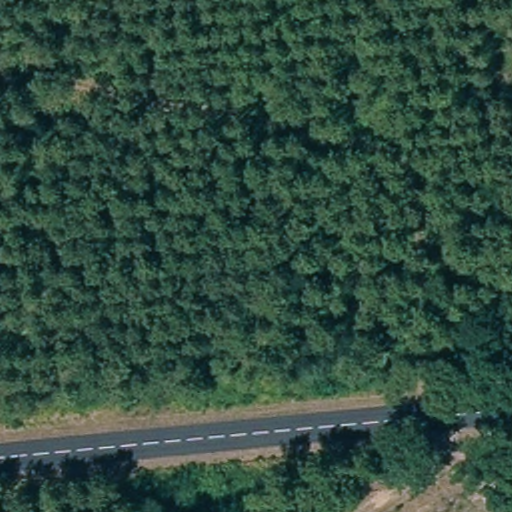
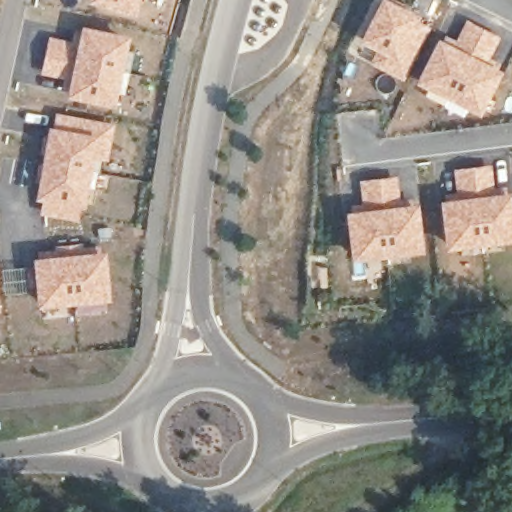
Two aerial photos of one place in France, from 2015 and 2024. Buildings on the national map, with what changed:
new [(88,0),(142,0),(137,16),(87,2),(88,0)]
new [(378,0),(391,0),(432,21),(402,80),(368,62),(375,49),(357,40),(378,0)]
new [(441,32),(453,40),(466,18),(501,37),(488,61),(504,69),(481,116),(413,82),(441,32)]
new [(69,80),(76,41),(81,23),(131,35),(127,54),(131,55),(118,107),(65,96),(69,80)]
new [(49,35),(76,41),(69,80),(40,73),(49,35)]
new [(48,125),(51,125),(55,110),(115,122),(107,161),(99,160),(82,223),(39,216),(42,201),(34,199),(48,125)]
new [(491,162),(495,191),(456,195),(452,167),(491,162)]
new [(397,174),(401,202),(361,206),(357,178),(397,174)]
new [(456,195),(495,191),(512,189),(512,242),(445,248),(438,198),(456,195)]
new [(361,206),(401,202),(417,199),(424,252),(351,260),(343,208),(361,206)]
new [(107,248),(112,307),(77,306),(37,308),(31,256),(107,248)]
new [(0,309),(0,304),(1,308),(0,309)]

